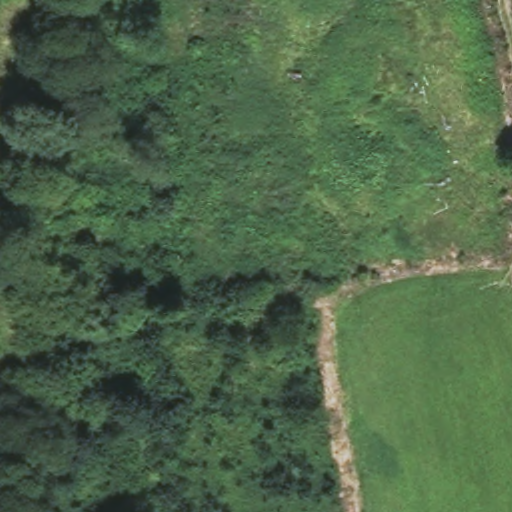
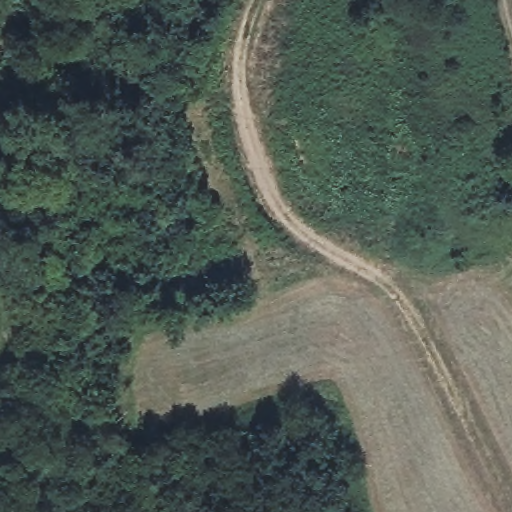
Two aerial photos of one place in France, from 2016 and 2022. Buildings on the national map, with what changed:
unchanged [(27,257),(0,255),(0,219),(28,220),(27,257)]

